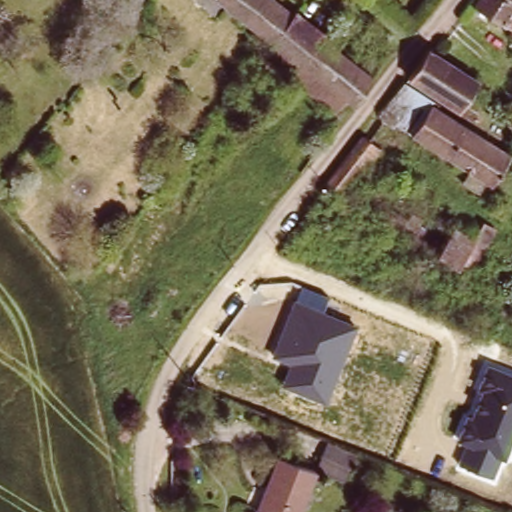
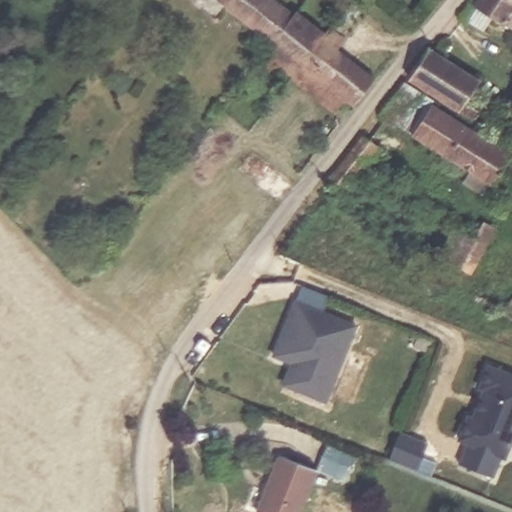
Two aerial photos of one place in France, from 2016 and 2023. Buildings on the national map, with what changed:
unchanged [(216,0),(272,0),(290,12),(270,37),(216,0)]
unchanged [(509,28),(476,9),(482,0),(512,0),(512,30),(509,28)]
unchanged [(313,47),(294,71),(296,57),(293,60),(281,52),(265,43),(270,37),(290,12),(292,9),(325,32),(313,47)]
unchanged [(329,27),(345,39),(338,47),(371,72),(344,111),(323,103),(320,100),(289,77),(293,72),(294,71),(313,47),(325,32),(329,27)]
unchanged [(483,85),(471,104),(481,110),(475,120),(408,77),(430,50),(483,85)]
unchanged [(416,140),(434,111),(512,160),(502,176),(511,182),(503,194),(416,140)]
unchanged [(328,177),(338,165),(361,134),(383,149),(372,165),(367,162),(351,185),(369,197),(366,201),(328,177)]
unchanged [(459,229),(475,239),(485,223),(496,231),(473,267),(446,250),(459,229)]
unchanged [(277,384),(287,363),(272,355),(301,287),(327,298),(322,311),(358,325),(325,404),(277,384)]
unchanged [(458,463),(466,443),(453,439),(465,413),(470,415),(480,388),(475,387),(483,366),(512,377),(512,441),(505,458),(501,457),(490,479),(458,463)]
unchanged [(301,512),(265,512),(261,511),(272,484),(270,483),(281,456),(317,470),(301,512)]

